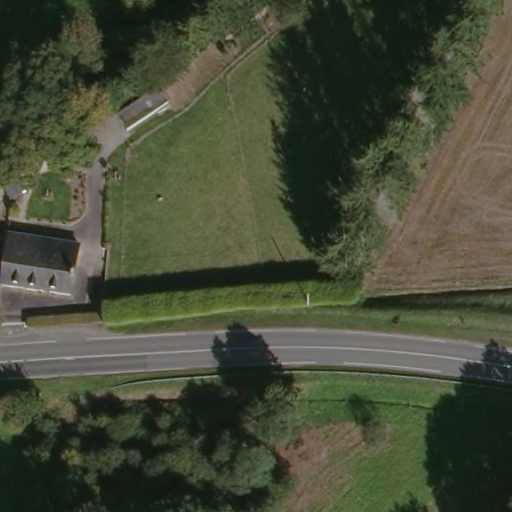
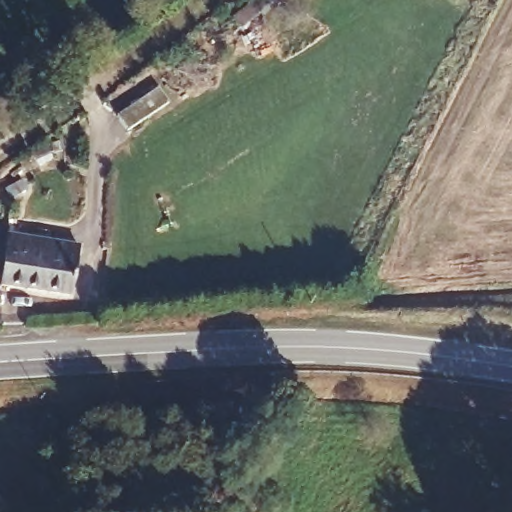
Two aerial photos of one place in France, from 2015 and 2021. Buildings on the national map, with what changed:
unchanged [(237,17),(258,0),(279,0),(246,28),(237,17)]
unchanged [(134,130),(125,117),(166,86),(176,100),(136,132),(134,130)]
unchanged [(12,233),(83,244),(75,290),(6,287),(12,233)]

